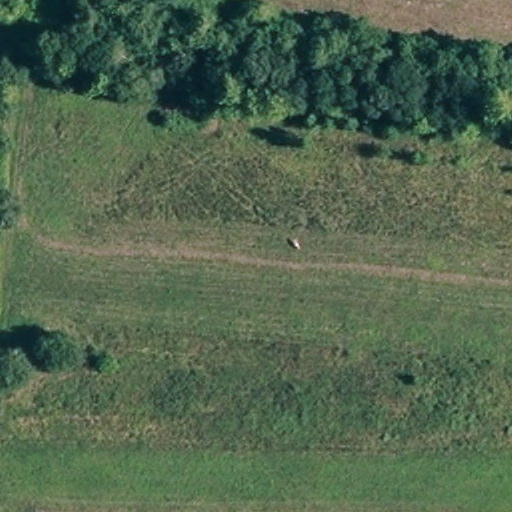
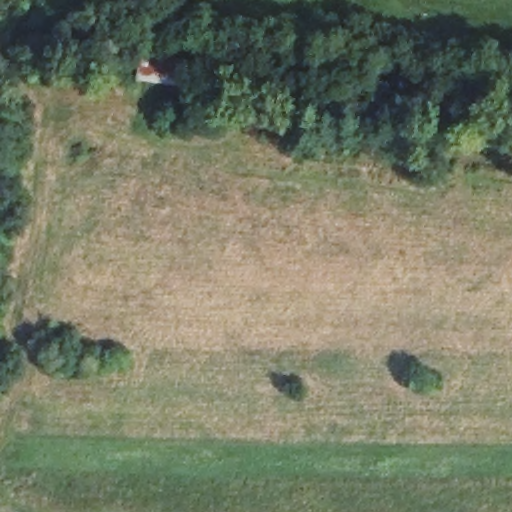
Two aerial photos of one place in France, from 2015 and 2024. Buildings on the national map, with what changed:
unchanged [(199,62),(195,90),(154,83),(158,56),(199,62)]

